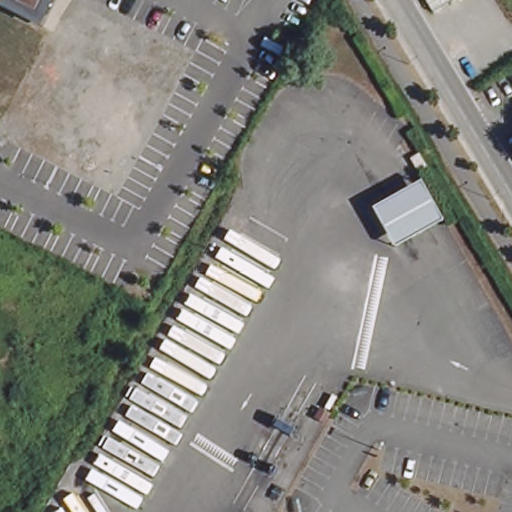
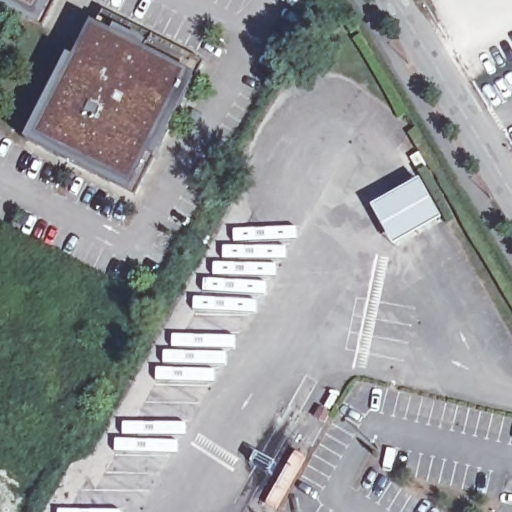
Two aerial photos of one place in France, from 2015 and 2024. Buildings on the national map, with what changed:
unchanged [(41,27),(0,8),(0,0),(55,0),(41,27)]
new [(70,56),(76,59),(93,24),(103,12),(206,63),(198,78),(158,162),(149,157),(130,197),(26,143),(70,56)]
unchanged [(391,249),(367,206),(420,180),(442,224),(391,249)]

